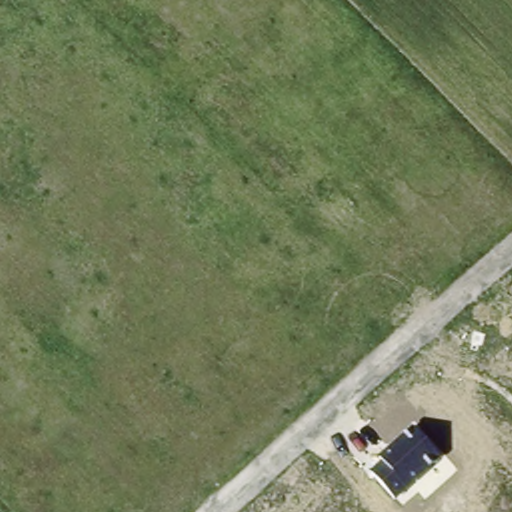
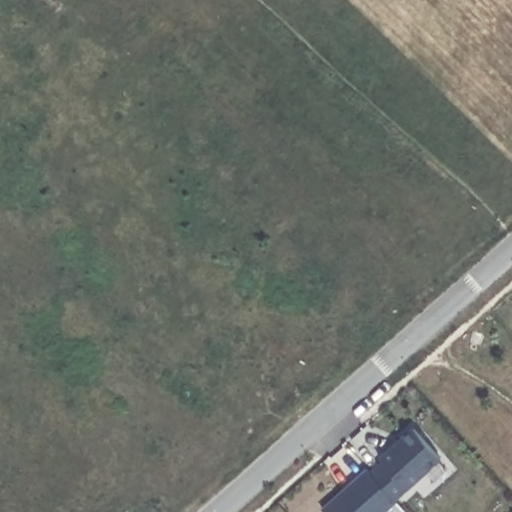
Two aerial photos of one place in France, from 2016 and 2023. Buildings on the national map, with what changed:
unchanged [(371,472),(383,462),(378,457),(413,427),(442,458),(396,499),(371,472)]
new [(381,512),(325,512),(321,508),(366,467),(371,472),(396,499),(381,512)]

